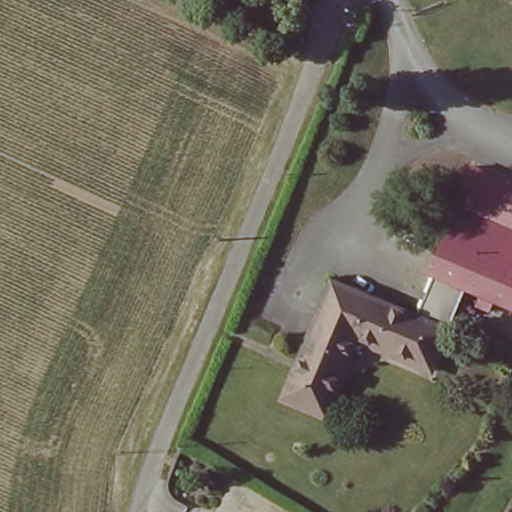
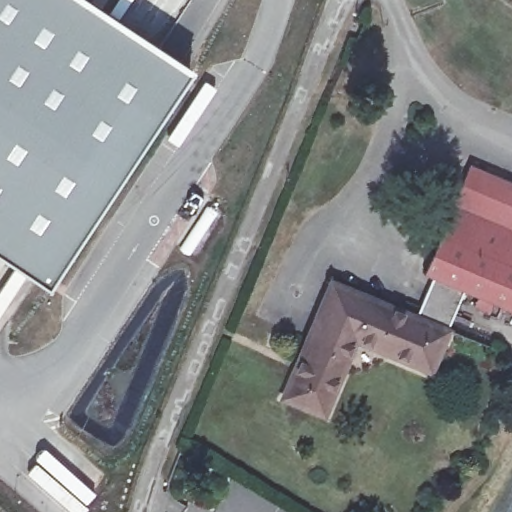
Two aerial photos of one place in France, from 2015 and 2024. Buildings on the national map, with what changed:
new [(46,285),(0,255),(0,0),(90,0),(191,67),(46,285)]
unchanged [(449,209),(466,170),(512,190),(512,234),(449,209)]
unchanged [(460,295),(429,282),(421,278),(449,210),(512,236),(512,316),(460,295)]
unchanged [(460,295),(450,317),(426,375),(351,344),(320,419),(280,402),(328,287),(413,323),(428,286),(429,282),(460,295)]

